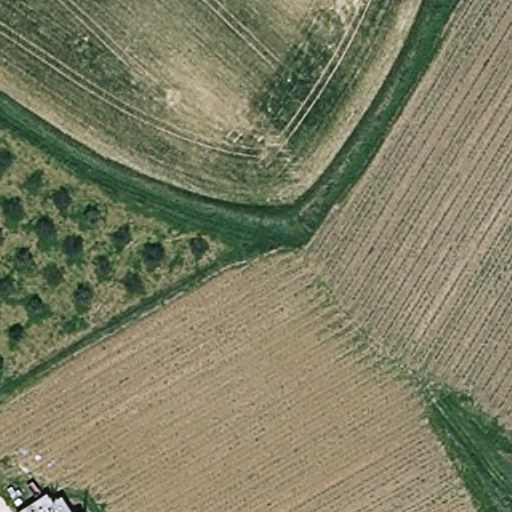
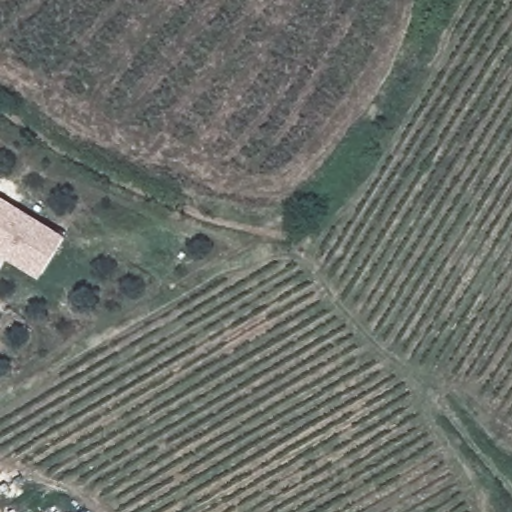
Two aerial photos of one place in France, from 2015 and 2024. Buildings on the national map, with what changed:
new [(38,280),(0,256),(0,197),(65,238),(38,280)]

